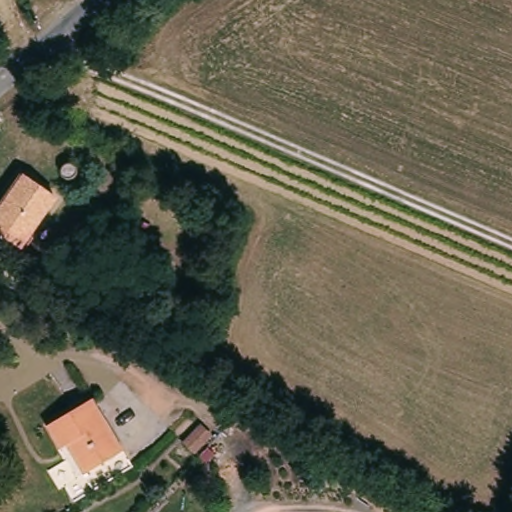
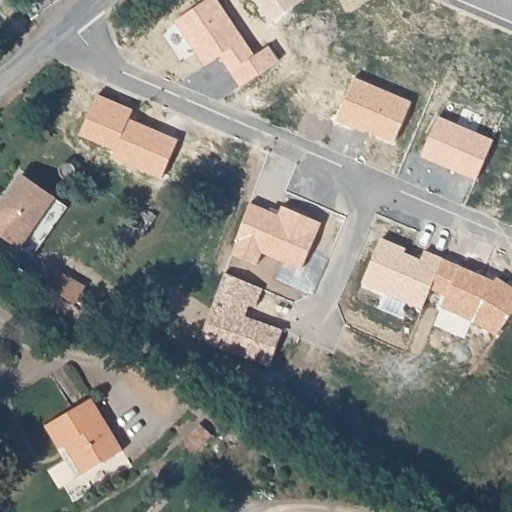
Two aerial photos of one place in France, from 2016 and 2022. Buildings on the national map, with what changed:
new [(218,0),(257,55),(270,45),(281,60),(241,87),(220,56),(206,66),(176,22),(208,0),(218,0)]
new [(254,0),(302,0),(270,22),(254,0)]
new [(356,76),(412,101),(395,142),(366,129),(364,132),(337,121),(356,76)]
new [(440,114),(496,138),(478,180),(422,156),(440,114)]
unchanged [(76,168),(77,172),(76,177),(72,180),(68,181),(64,180),(60,177),(59,173),(60,168),(62,165),(67,163),(72,165),(76,168)]
unchanged [(20,246),(0,232),(0,207),(22,174),(56,198),(20,246)]
new [(252,201),(278,214),(282,205),(321,223),(300,270),(263,253),(258,265),(232,255),(252,201)]
new [(382,237),(407,247),(406,252),(422,259),(426,251),(445,258),(432,289),(423,309),(362,284),(382,237)]
new [(493,279),(498,277),(512,287),(512,316),(499,334),(474,320),(442,307),(447,296),(432,289),(445,258),(493,279)]
new [(226,272),(264,288),(257,306),(251,304),(247,316),(284,330),(271,365),(201,340),(226,272)]
unchanged [(84,290),(77,304),(47,288),(55,274),(84,290)]
unchanged [(122,451),(84,474),(66,445),(60,448),(47,426),(93,399),(122,451)]
unchanged [(195,453),(182,441),(200,422),(212,434),(195,453)]

